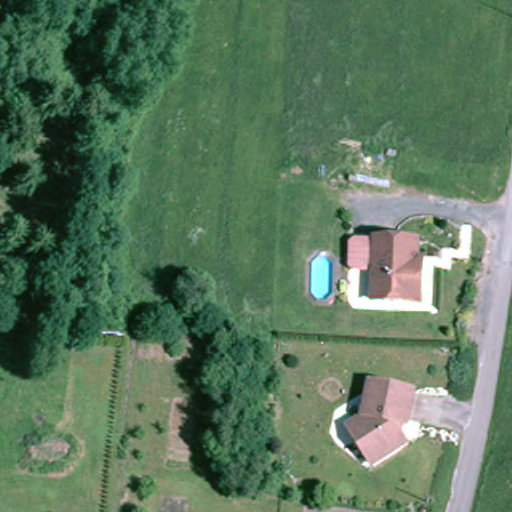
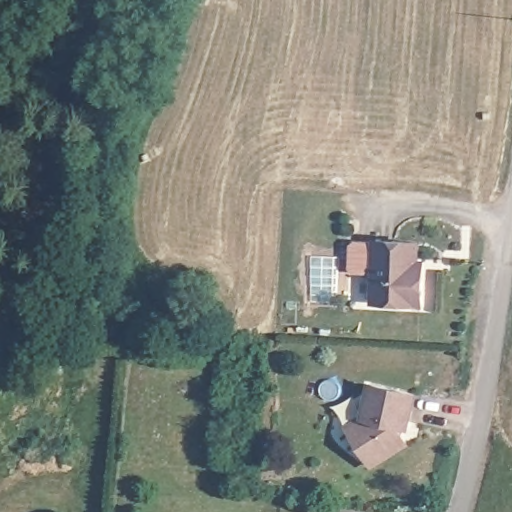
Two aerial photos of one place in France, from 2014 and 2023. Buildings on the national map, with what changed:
unchanged [(426,303),(377,302),(378,274),(357,274),(353,270),(353,247),(357,243),(378,243),(378,242),(421,243),(420,262),(427,262),(427,279),(426,301),(426,303)]
unchanged [(406,429),(405,435),(408,436),(415,447),(381,469),(355,433),(371,423),(377,389),(421,397),(415,430),(406,429)]

